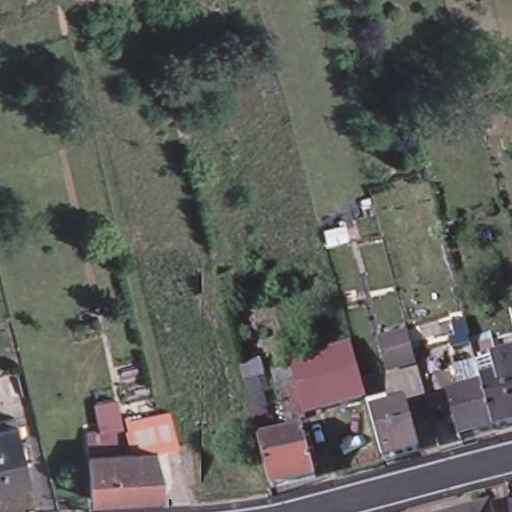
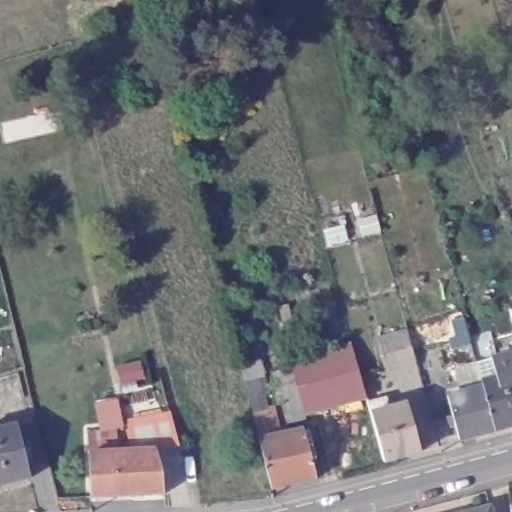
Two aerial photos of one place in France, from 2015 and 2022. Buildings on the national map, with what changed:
unchanged [(405,329),(414,360),(385,367),(376,337),(405,329)]
unchanged [(499,357),(477,363),(473,346),(495,341),(499,357)]
unchanged [(294,360),(352,344),(367,396),(308,412),(309,416),(292,420),(282,384),(300,380),(294,360)]
unchanged [(460,443),(449,398),(462,395),(457,370),(477,364),(478,366),(512,357),(512,430),(496,434),(460,443)]
unchanged [(275,496),(264,449),(263,449),(247,390),(243,374),(264,368),(268,384),(270,392),(262,394),(271,426),(274,425),(279,445),(307,439),(320,487),(275,496)]
unchanged [(388,458),(375,410),(374,411),(371,399),(391,394),(394,406),(411,401),(423,449),(388,458)]
unchanged [(127,441),(123,419),(154,412),(167,409),(169,409),(179,447),(177,448),(156,453),(161,474),(162,493),(112,495),(110,451),(123,450),(121,442),(127,441)]
unchanged [(17,428),(21,446),(26,445),(29,453),(24,454),(30,481),(0,488),(0,432),(17,428)]
unchanged [(112,495),(90,496),(87,452),(110,451),(112,495)]
unchanged [(488,512),(464,512),(487,506),(488,512)]

